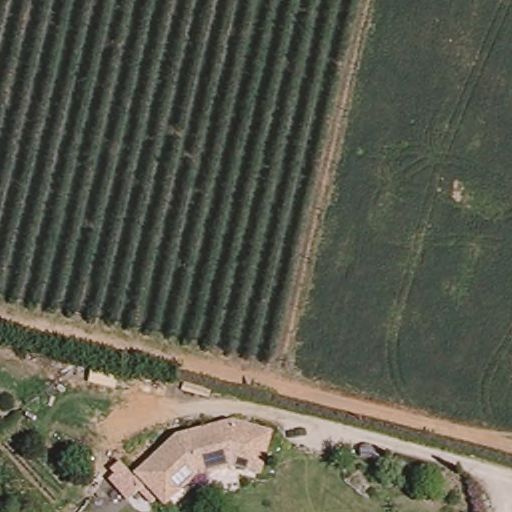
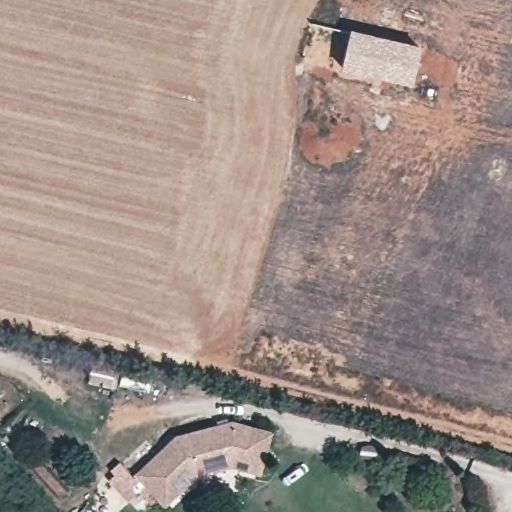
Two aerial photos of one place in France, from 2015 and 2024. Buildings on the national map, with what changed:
new [(350,29),(422,46),(412,86),(341,69),(350,29)]
unchanged [(225,467),(181,487),(168,507),(136,476),(171,433),(235,417),(281,428),(265,476),(225,467)]

